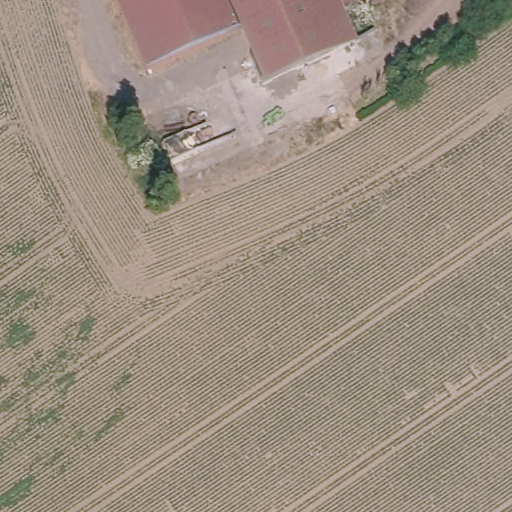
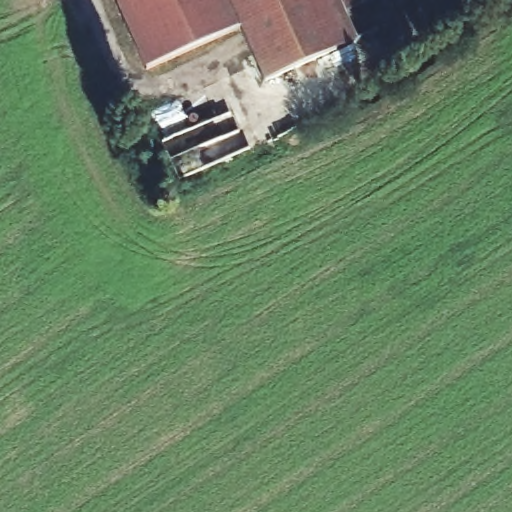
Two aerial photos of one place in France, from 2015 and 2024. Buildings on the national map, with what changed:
unchanged [(121,37),(104,0),(235,0),(237,4),(131,48),(127,50),(121,37)]
unchanged [(348,6),(360,34),(291,65),(270,74),(237,4),(235,0),(345,0),(348,6)]

